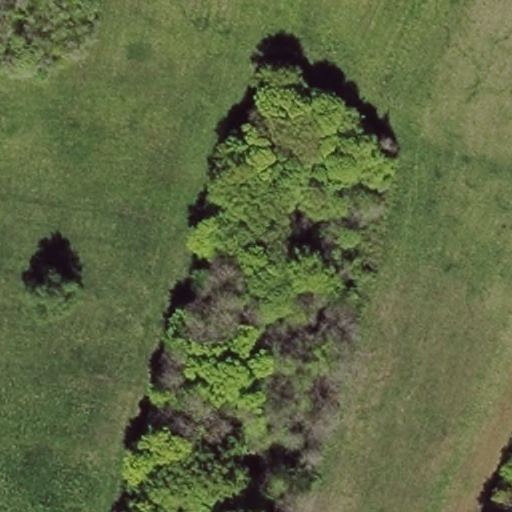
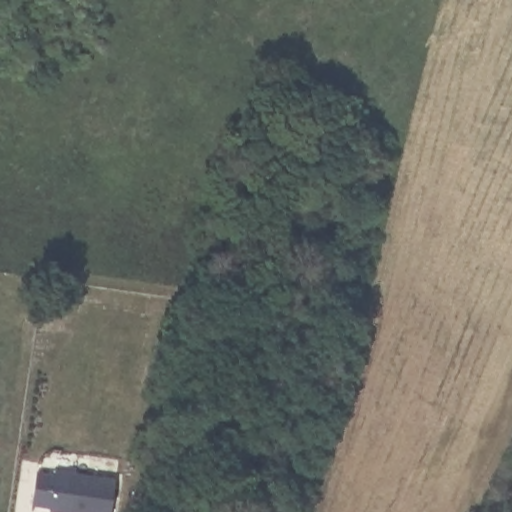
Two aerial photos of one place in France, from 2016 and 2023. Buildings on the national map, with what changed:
new [(112,512),(51,512),(57,470),(117,479),(112,512)]

